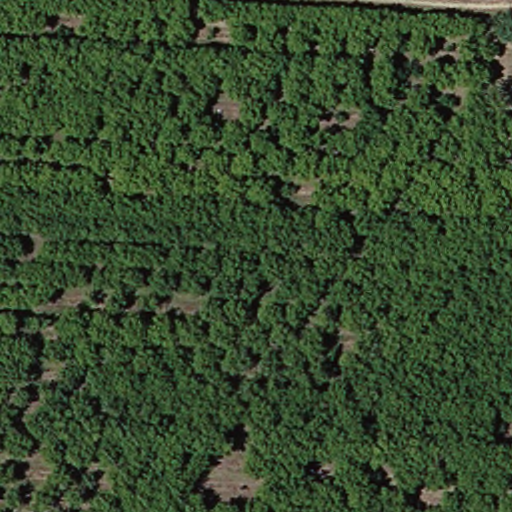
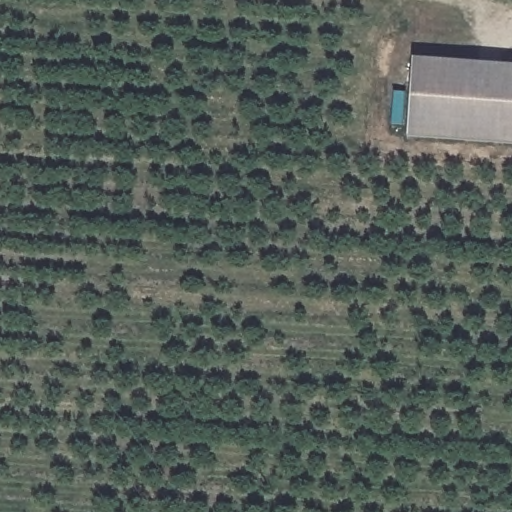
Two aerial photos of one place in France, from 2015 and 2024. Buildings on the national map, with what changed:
new [(512,146),(407,138),(412,59),(512,66),(512,146)]

